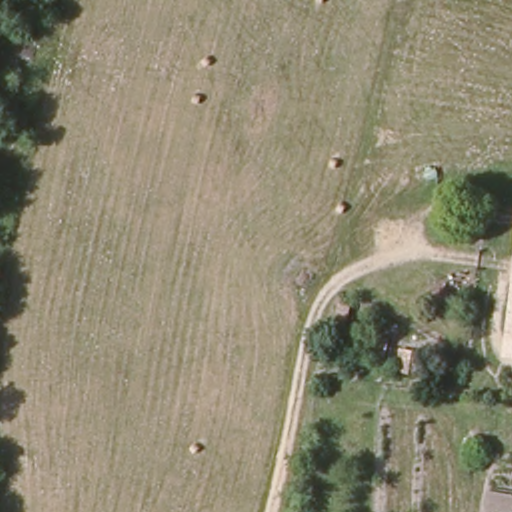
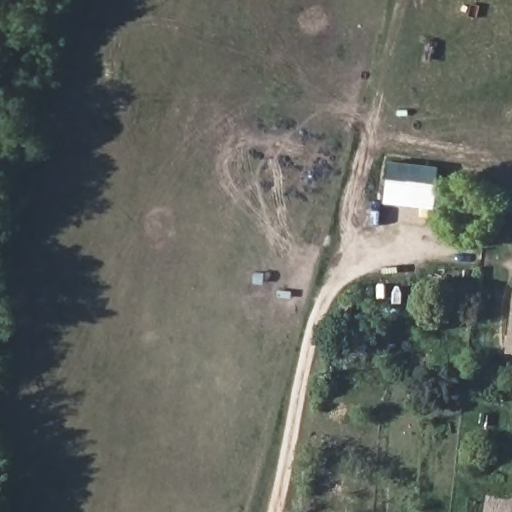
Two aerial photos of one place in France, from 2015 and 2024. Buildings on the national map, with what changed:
new [(382,202),(386,160),(438,167),(433,209),(382,202)]
unchanged [(507,338),(512,302),(512,339),(507,338)]
unchanged [(377,333),(387,335),(384,354),(375,353),(377,333)]
unchanged [(407,367),(399,367),(401,348),(409,349),(407,367)]

